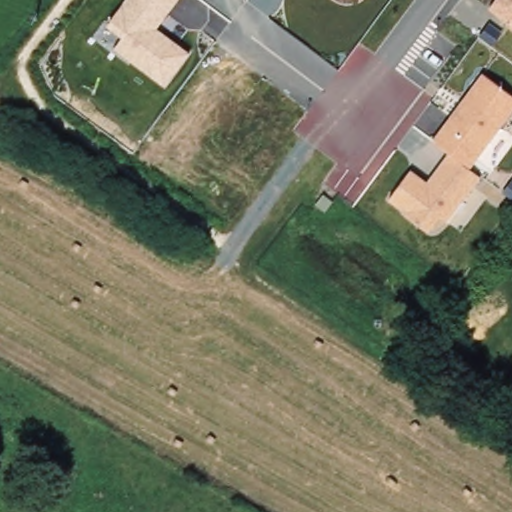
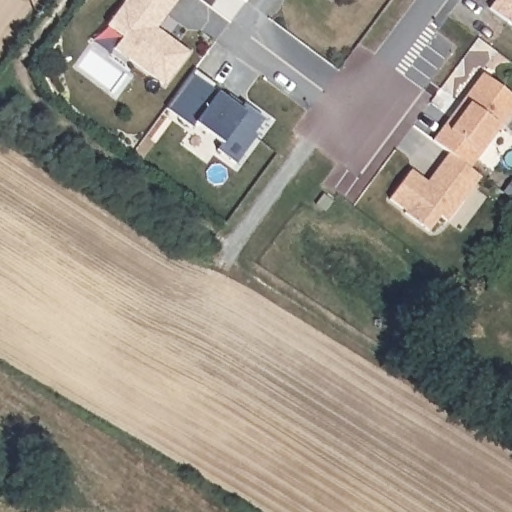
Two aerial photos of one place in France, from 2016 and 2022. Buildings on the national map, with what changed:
unchanged [(156,29),(189,53),(163,86),(111,50),(120,38),(105,28),(124,0),(178,0),(156,29)]
unchanged [(493,0),(512,0),(512,25),(487,8),(493,0)]
new [(220,88),(217,93),(239,108),(243,102),(264,118),(252,132),(256,133),(234,163),(217,151),(222,142),(196,122),(192,126),(166,108),(194,70),(220,88)]
unchanged [(480,176),(446,223),(438,217),(428,231),(402,216),(404,213),(386,201),(409,169),(425,180),(448,152),(431,139),(480,73),(512,96),(512,112),(469,168),(480,176)]

